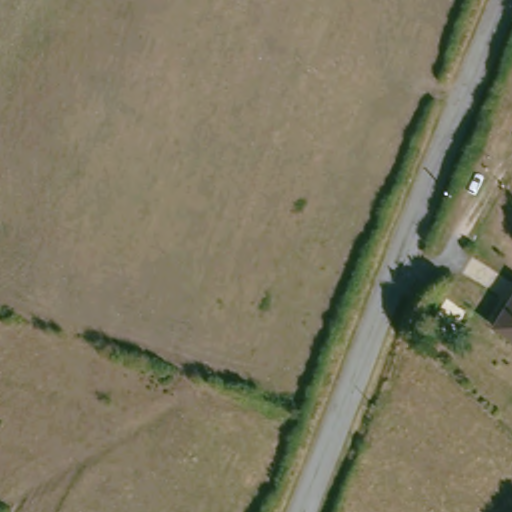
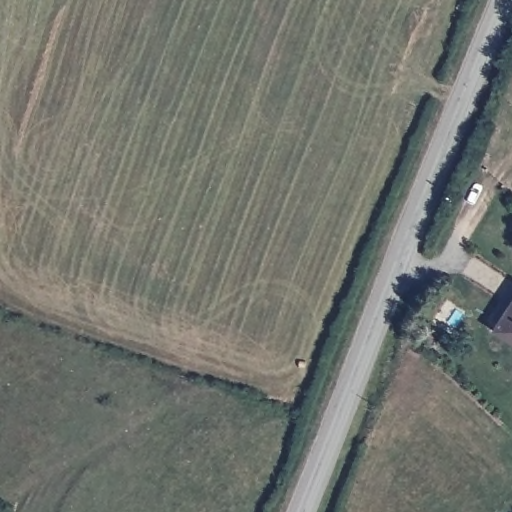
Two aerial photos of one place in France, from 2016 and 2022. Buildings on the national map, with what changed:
unchanged [(512,309),(512,341),(495,329),(512,309)]

